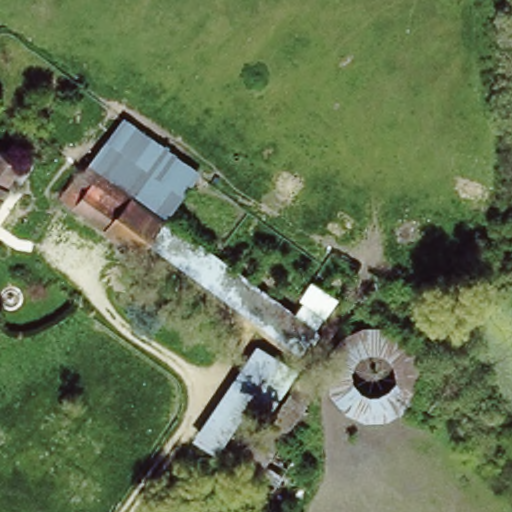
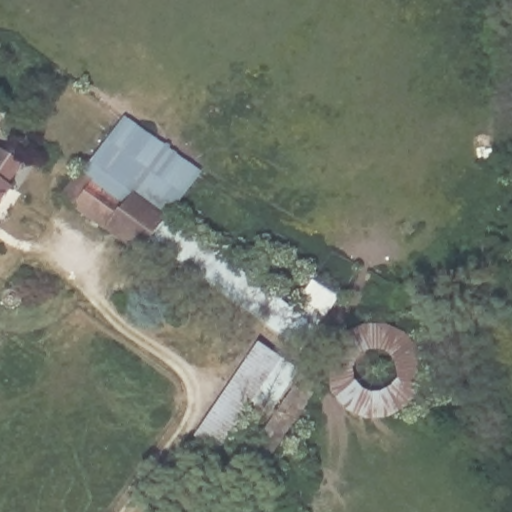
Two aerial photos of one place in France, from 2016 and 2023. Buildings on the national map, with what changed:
unchanged [(153,239),(139,258),(59,203),(80,173),(105,192),(110,186),(102,180),(122,152),(142,166),(150,153),(155,148),(197,179),(194,184),(165,224),(153,239)]
unchanged [(0,151),(20,165),(7,186),(14,191),(0,211),(0,151)]
unchanged [(165,224),(318,328),(307,344),(153,239),(165,224)]
unchanged [(339,356),(354,344),(364,337),(380,329),(398,330),(410,337),(419,352),(425,371),(425,392),(414,407),(397,418),(372,426),(345,421),(330,404),(322,374),(339,356)]
unchanged [(250,349),(268,361),(210,449),(192,438),(250,349)]
unchanged [(301,376),(317,387),(257,475),(241,464),(301,376)]

